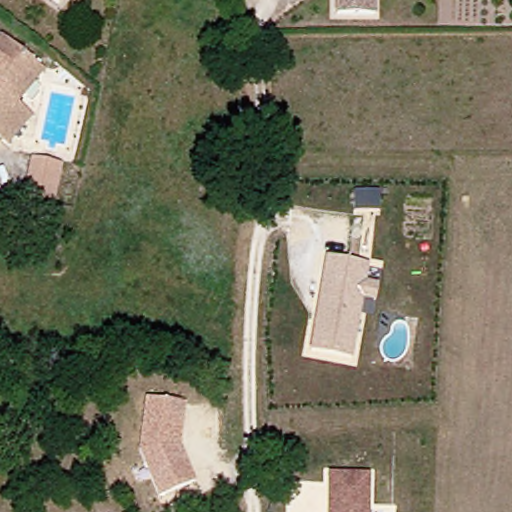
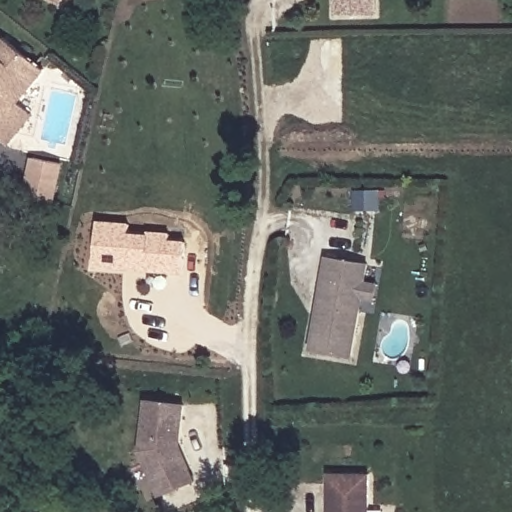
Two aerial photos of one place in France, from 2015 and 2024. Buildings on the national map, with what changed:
unchanged [(55,0),(69,0),(65,7),(55,0)]
unchanged [(338,14),(339,0),(377,0),(376,17),(338,14)]
unchanged [(10,42),(16,45),(45,70),(22,100),(35,111),(12,143),(0,136),(0,122),(0,121),(0,41),(2,37),(10,42)]
unchanged [(31,203),(38,164),(65,169),(57,208),(31,203)]
new [(96,220),(128,223),(127,233),(145,235),(146,231),(168,234),(167,241),(185,242),(182,277),(92,268),(96,220)]
unchanged [(374,288),(371,302),(357,300),(346,360),(305,352),(323,260),(364,268),(360,286),(374,288)]
unchanged [(179,411),(175,442),(190,478),(155,493),(135,447),(141,406),(179,411)]
unchanged [(328,472),(368,472),(369,512),(328,512),(328,472)]

